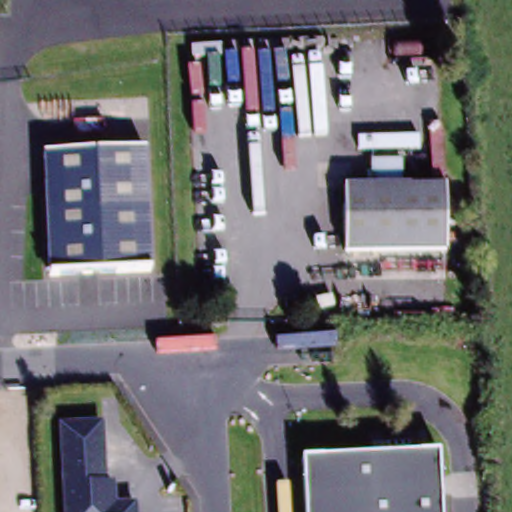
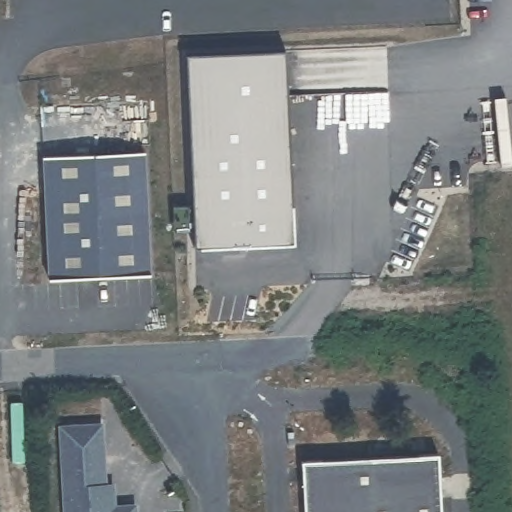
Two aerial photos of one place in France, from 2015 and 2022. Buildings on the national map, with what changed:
new [(284,50),(290,204),(294,204),(295,246),(195,248),(187,55),(284,50)]
demolished [(408,145),(408,185),(369,186),(369,145),(408,145)]
unchanged [(46,156),(150,152),(156,274),(51,280),(46,156)]
demolished [(344,254),(342,187),(369,186),(408,185),(446,184),(449,252),(344,254)]
unchanged [(109,488),(116,488),(118,512),(139,511),(139,512),(68,512),(65,431),(106,429),(109,488)]
unchanged [(443,512),(302,512),(300,460),(440,452),(443,512)]

